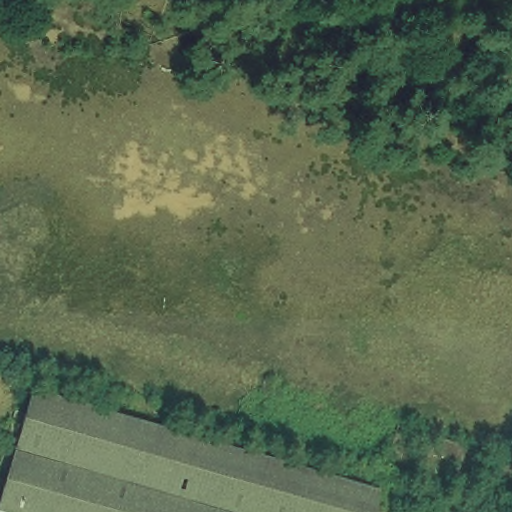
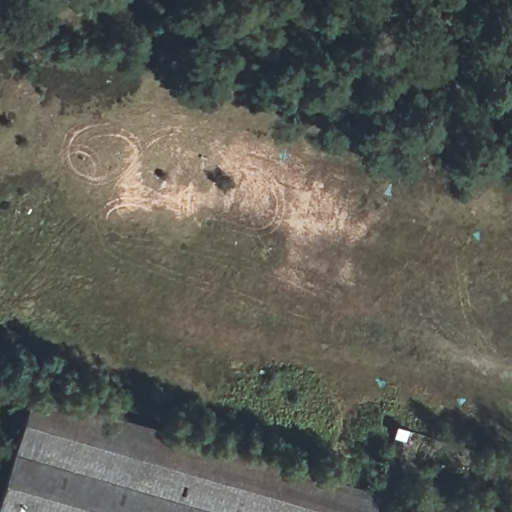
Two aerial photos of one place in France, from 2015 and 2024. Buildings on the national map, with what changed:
unchanged [(383,491),(377,512),(0,512),(34,392),(383,491)]

